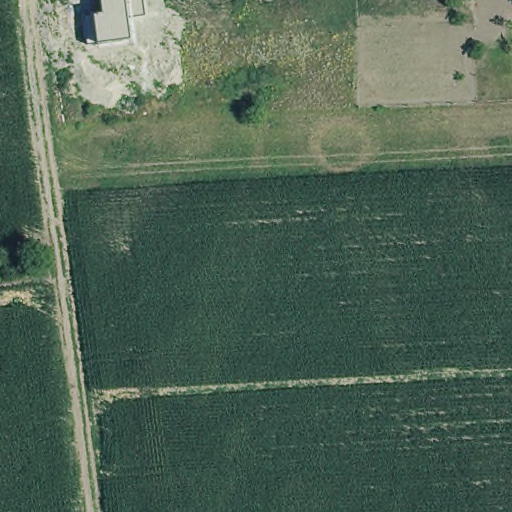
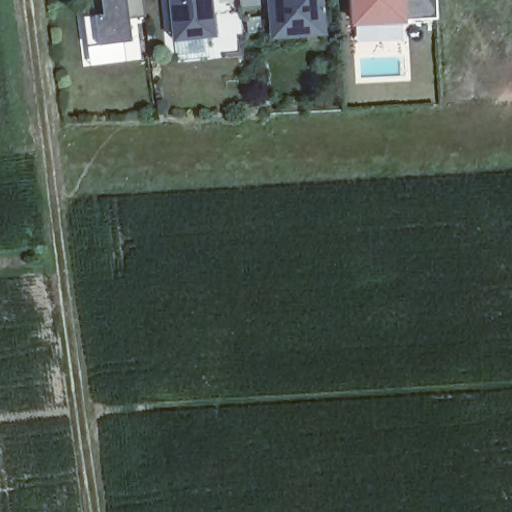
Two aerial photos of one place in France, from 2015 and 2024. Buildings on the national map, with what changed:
unchanged [(145,16),(128,19),(130,39),(99,43),(88,45),(85,16),(96,14),(105,13),(103,0),(143,0),(145,16)]
new [(216,36),(173,40),(169,0),(213,0),(216,36)]
new [(271,38),(267,6),(241,8),(240,0),(324,0),(328,33),(271,38)]
new [(439,23),(353,27),(351,0),(437,0),(439,23)]

